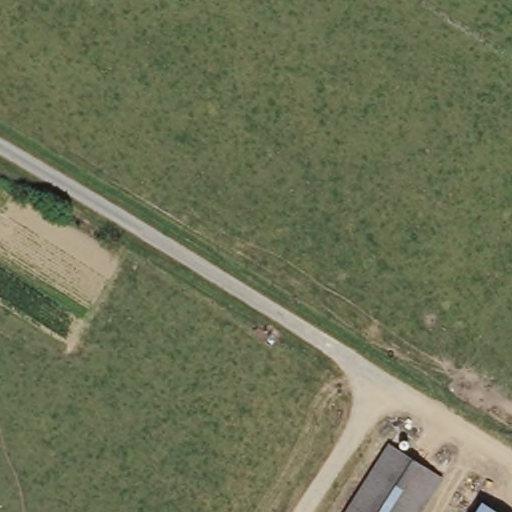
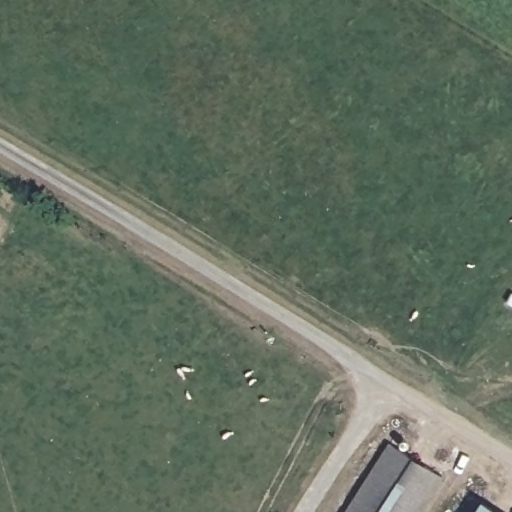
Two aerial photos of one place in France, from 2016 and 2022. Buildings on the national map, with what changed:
unchanged [(350,512),(390,447),(443,479),(422,512),(350,512)]
unchanged [(472,512),(478,503),(494,512),(472,512)]

